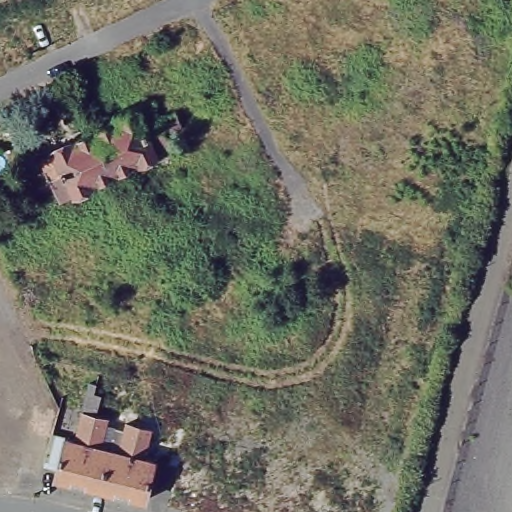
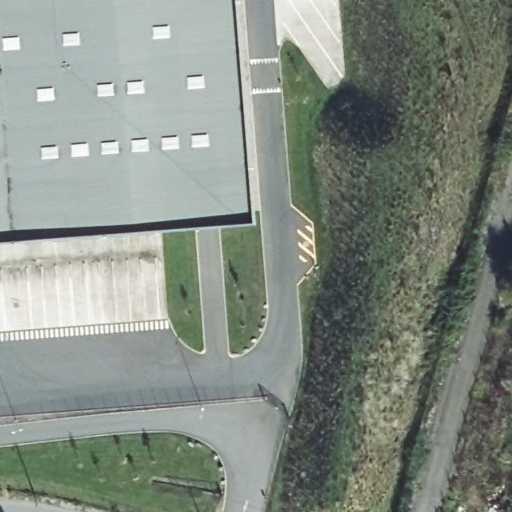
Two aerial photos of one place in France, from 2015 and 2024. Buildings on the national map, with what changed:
new [(238,219),(0,238),(0,0),(220,0),(238,219)]
demolished [(0,318),(0,310),(3,317),(0,318)]
demolished [(145,398),(141,414),(138,413),(136,418),(127,415),(128,411),(123,409),(128,393),(145,398)]
demolished [(60,407),(74,411),(70,428),(55,424),(59,412),(60,407)]
demolished [(153,416),(145,414),(147,407),(155,409),(153,416)]
demolished [(76,444),(84,415),(96,418),(78,486),(54,480),(56,473),(43,470),(52,437),(65,441),(76,444)]
demolished [(107,421),(100,450),(111,453),(101,492),(78,486),(96,418),(107,421)]
demolished [(23,472),(32,447),(40,420),(55,424),(46,451),(38,477),(23,472)]
demolished [(122,455),(130,426),(141,429),(123,498),(101,492),(111,453),(122,455)]
demolished [(153,433),(151,444),(147,461),(156,464),(145,504),(123,498),(141,429),(153,433)]
demolished [(185,442),(180,460),(169,457),(172,443),(174,438),(185,442)]
demolished [(180,512),(166,508),(177,469),(178,470),(188,472),(196,444),(207,448),(190,512),(180,512)]
demolished [(190,512),(207,448),(219,451),(210,478),(222,481),(213,512),(190,512)]
demolished [(213,512),(222,481),(232,484),(240,457),(251,460),(238,512),(213,512)]
demolished [(275,482),(281,460),(293,463),(287,483),(298,486),(295,500),(305,502),(316,459),(320,460),(328,462),(323,478),(314,512),(279,512),(286,485),(275,482)]
demolished [(256,491),(267,494),(262,512),(238,512),(251,460),(265,463),(256,491)]
demolished [(336,482),(328,509),(340,512),(314,512),(323,478),(336,482)]
demolished [(403,499),(402,504),(401,505),(390,501),(385,500),(390,483),(406,488),(403,499)]
demolished [(375,512),(363,512),(368,491),(380,494),(375,512)]

